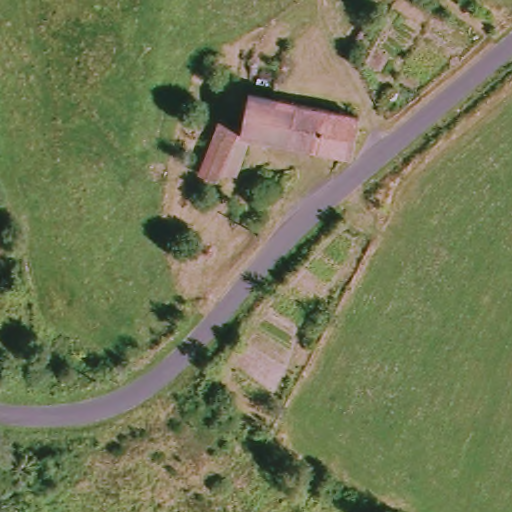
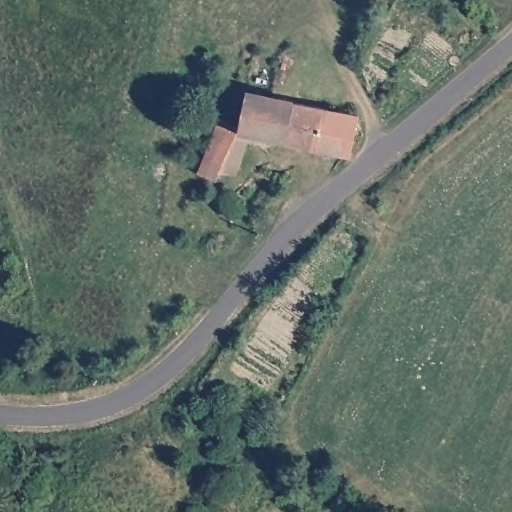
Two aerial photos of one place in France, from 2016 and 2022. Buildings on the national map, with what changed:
unchanged [(242,140),(247,100),(273,104),(305,108),(362,115),(356,154),(242,140)]
unchanged [(218,194),(200,188),(216,135),(236,140),(226,171),(218,194)]

